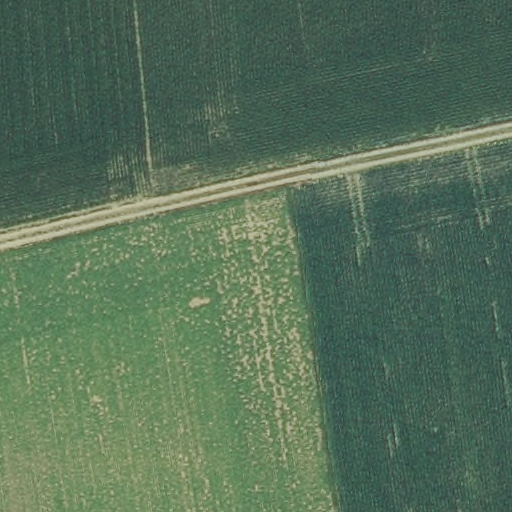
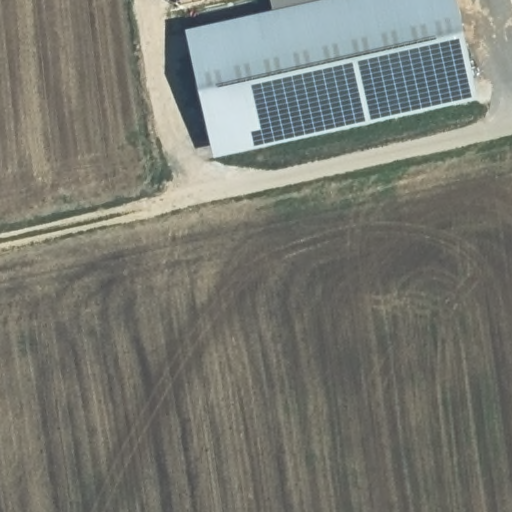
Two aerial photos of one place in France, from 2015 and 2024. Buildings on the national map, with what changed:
new [(327,0),(459,0),(479,100),(212,161),(189,34),(327,0)]

